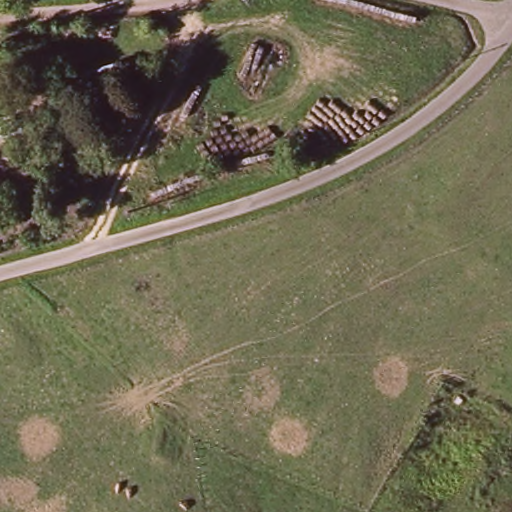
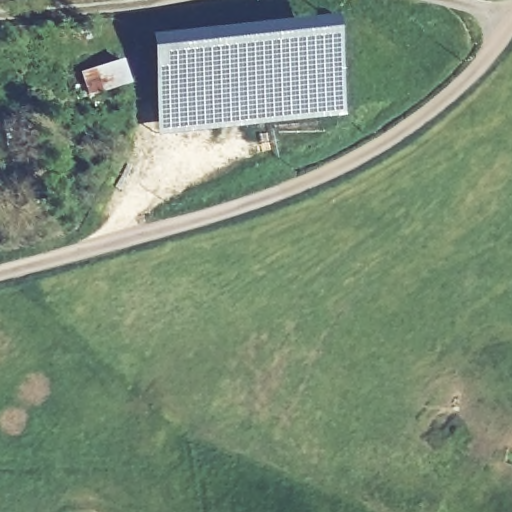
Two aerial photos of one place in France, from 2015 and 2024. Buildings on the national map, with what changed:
new [(337,113),(157,134),(146,32),(327,14),(337,113)]
new [(120,57),(128,81),(88,95),(80,71),(120,57)]

